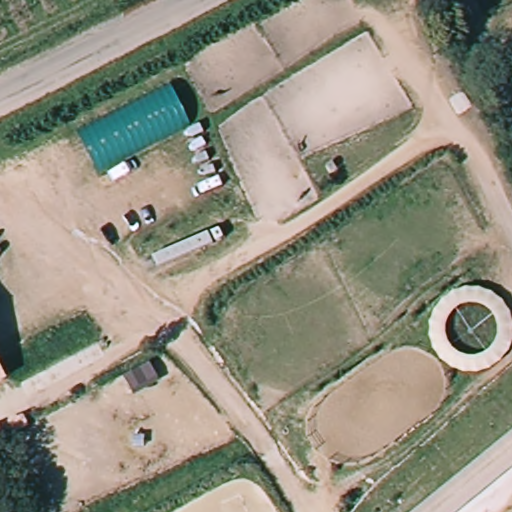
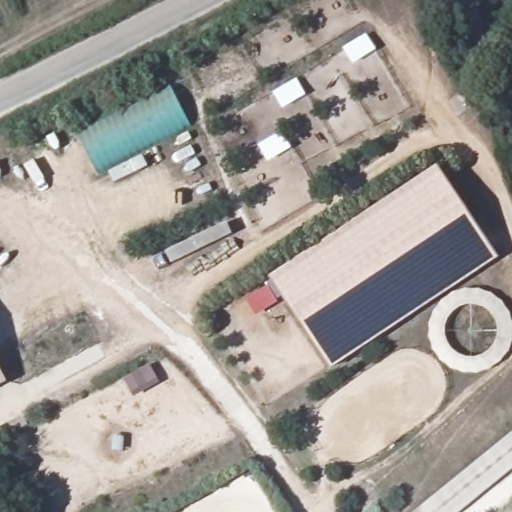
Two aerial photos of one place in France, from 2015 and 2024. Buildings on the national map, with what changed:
unchanged [(189,125),(96,172),(77,130),(170,84),(189,125)]
new [(332,367),(271,276),(438,165),(499,255),(332,367)]
unchanged [(512,324),(512,341),(510,349),(502,360),(493,367),(479,372),(462,371),(450,366),(439,357),(432,346),(428,331),(432,318),(437,305),(451,292),(461,288),(479,288),(491,294),(501,300),(511,316),(512,324)]
unchanged [(0,380),(0,372),(4,378),(0,380)]
unchanged [(448,512),(419,512),(512,434),(512,458),(448,512)]

